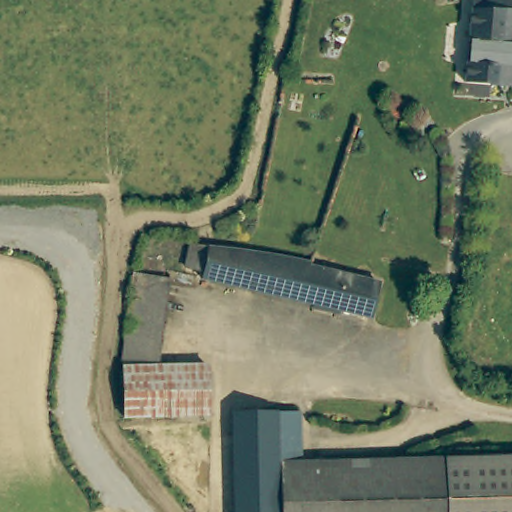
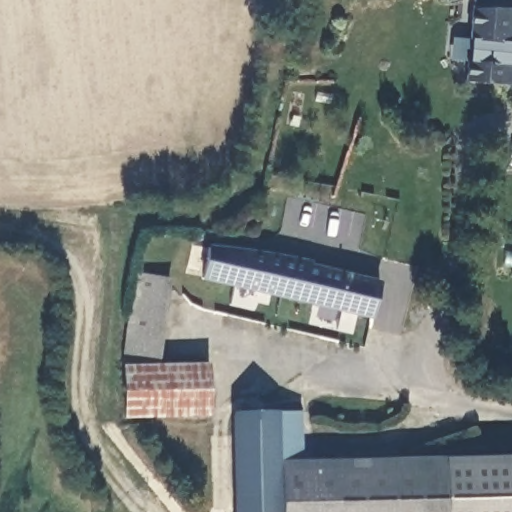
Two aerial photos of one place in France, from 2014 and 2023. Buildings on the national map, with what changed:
unchanged [(498,82),(465,78),(471,9),(496,10),(512,12),(512,83),(503,83),(498,82)]
unchanged [(255,253),(256,249),(309,261),(308,264),(377,281),(369,319),(202,278),(205,268),(186,263),(191,239),(216,245),(255,253)]
unchanged [(124,356),(136,272),(167,278),(154,368),(205,366),(204,388),(205,417),(130,420),(126,385),(124,356)]
unchanged [(318,512),(232,512),(232,413),(301,412),(301,462),(319,463),(318,512)]
unchanged [(434,464),(486,465),(512,465),(512,512),(318,512),(319,463),(434,464)]

